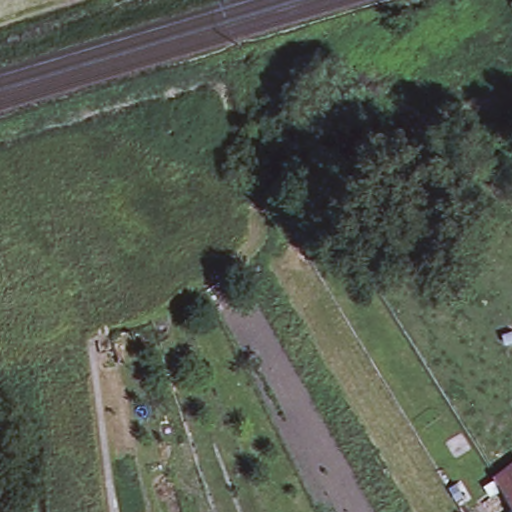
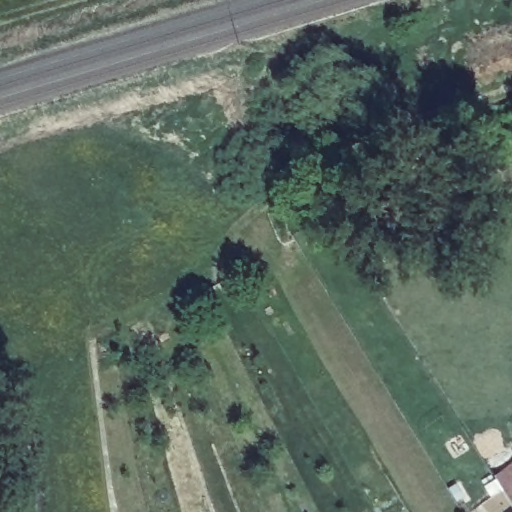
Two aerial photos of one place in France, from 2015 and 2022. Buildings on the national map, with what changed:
unchanged [(512,462),(512,508),(496,483),(494,480),(512,462)]

